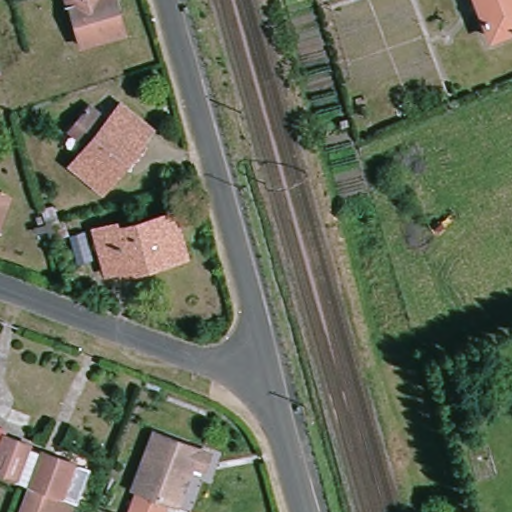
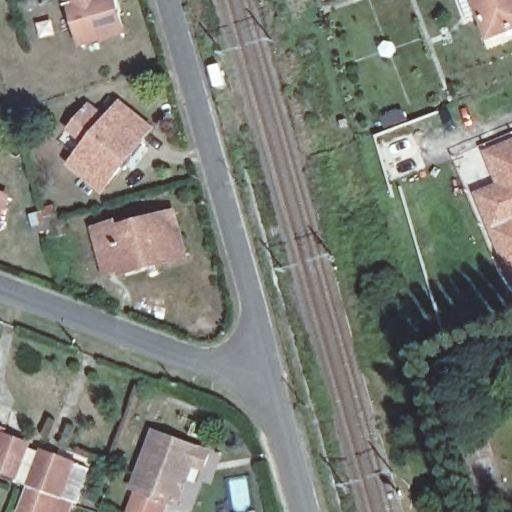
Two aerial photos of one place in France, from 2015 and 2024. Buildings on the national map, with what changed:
unchanged [(104,12),(110,10),(115,30),(74,41),(63,0),(56,2),(56,0),(100,0),(104,12)]
unchanged [(493,39),(475,0),(512,0),(512,31),(493,39)]
unchanged [(65,128),(82,107),(99,120),(112,103),(144,127),(135,141),(136,142),(98,191),(65,166),(84,142),(65,128)]
new [(473,191),(495,183),(482,151),(512,139),(512,292),(473,191)]
new [(45,223),(41,208),(54,205),(57,220),(64,219),(67,234),(57,237),(50,239),(45,223)]
unchanged [(179,257),(145,265),(144,260),(101,270),(90,228),(109,223),(110,228),(168,214),(179,257)]
unchanged [(129,484),(151,428),(156,430),(206,451),(200,466),(189,461),(172,501),(162,497),(157,512),(126,512),(135,487),(129,484)]
unchanged [(0,430),(5,432),(4,436),(25,445),(14,478),(0,473),(0,430)]
unchanged [(24,485),(38,448),(72,461),(86,465),(74,503),(65,500),(61,512),(17,512),(14,511),(24,485)]

